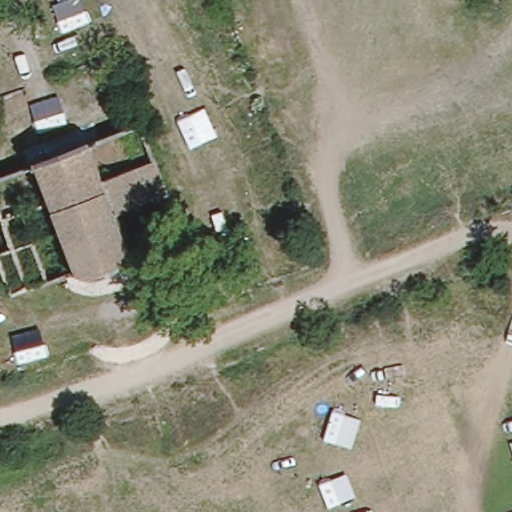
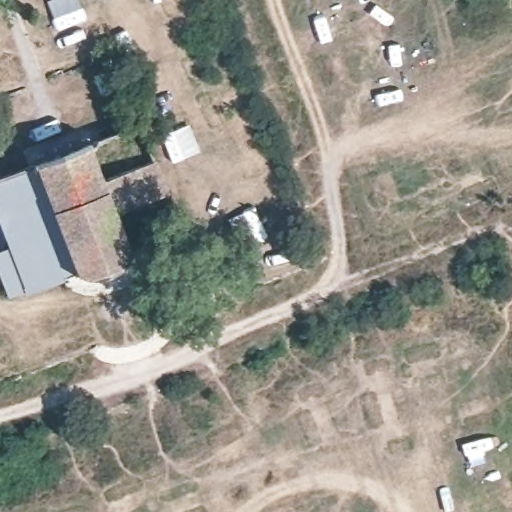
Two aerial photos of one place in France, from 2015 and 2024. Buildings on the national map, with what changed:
unchanged [(124,166),(158,155),(167,190),(140,198),(120,206),(136,252),(80,271),(78,266),(40,163),(38,159),(95,138),(106,171),(124,166)]
new [(25,291),(25,289),(10,296),(0,269),(0,250),(8,247),(0,224),(0,178),(40,163),(78,266),(80,271),(25,291)]

